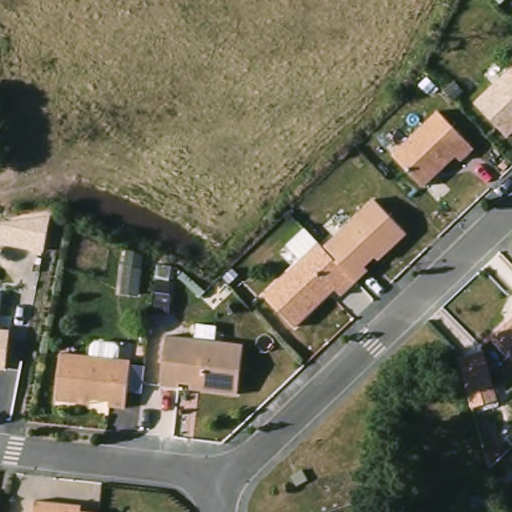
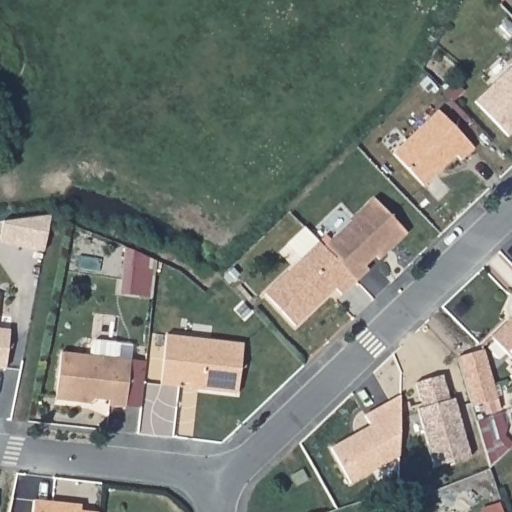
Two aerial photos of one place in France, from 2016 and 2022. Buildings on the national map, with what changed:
unchanged [(506,137),(473,103),(512,66),(512,131),(506,137)]
unchanged [(453,102),(444,92),(454,82),(463,92),(453,102)]
unchanged [(460,161),(455,156),(422,187),(391,155),(436,112),(472,149),(460,161)]
unchanged [(385,252),(382,248),(363,266),(367,270),(355,282),(322,247),(373,199),(405,233),(385,252)]
unchanged [(0,236),(5,217),(53,214),(44,252),(0,242),(0,236)]
unchanged [(264,292),(299,257),(287,244),(304,227),(322,247),(355,282),(340,294),(335,288),(296,325),(264,292)]
unchanged [(119,295),(122,268),(140,270),(136,297),(119,295)]
unchanged [(491,337),(512,315),(512,361),(491,337)]
unchanged [(5,370),(0,369),(0,331),(9,332),(5,370)]
unchanged [(196,390),(197,385),(178,382),(177,387),(159,386),(164,335),(241,343),(235,393),(196,390)]
unchanged [(459,357),(486,349),(500,399),(473,407),(459,357)]
unchanged [(78,403),(55,401),(60,353),(130,361),(125,408),(108,407),(109,402),(91,400),(90,405),(78,403)]
new [(448,400),(453,399),(456,407),(470,457),(433,467),(416,410),(421,408),(414,383),(441,376),(448,400)]
new [(369,426),(364,416),(400,396),(398,456),(349,483),(330,448),(369,426)]
unchanged [(299,488),(292,478),(303,472),(309,482),(299,488)]
unchanged [(35,512),(36,498),(70,502),(84,503),(83,509),(100,511),(100,512),(35,512)]

